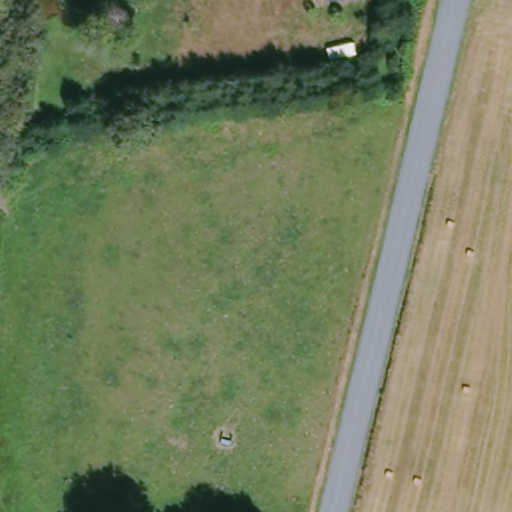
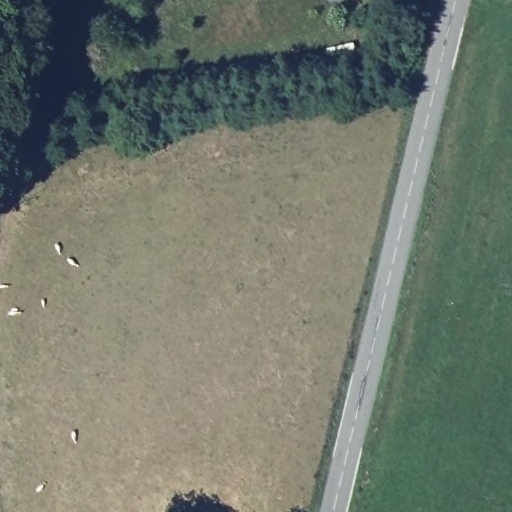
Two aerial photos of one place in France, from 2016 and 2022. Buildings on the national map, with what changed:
unchanged [(332,1),(331,0),(342,0),(332,1)]

